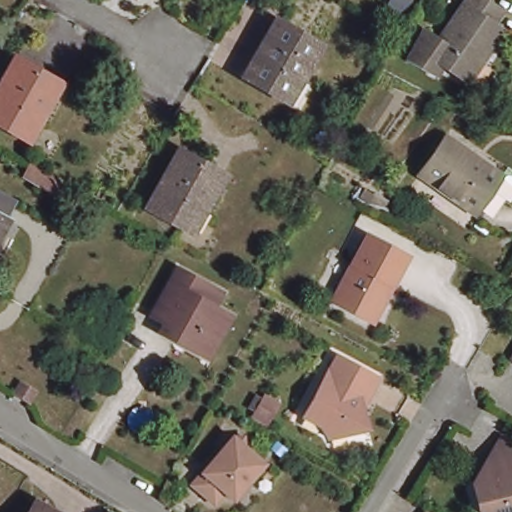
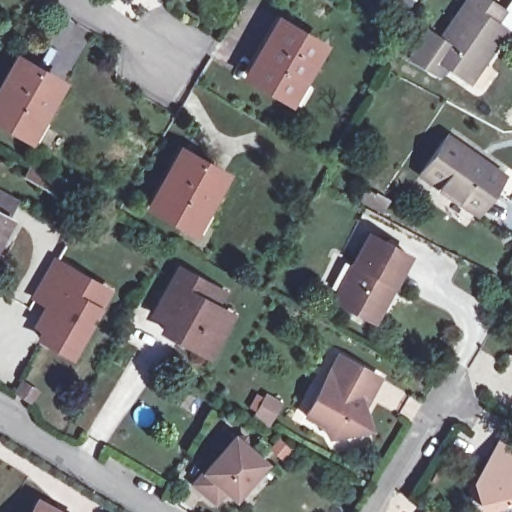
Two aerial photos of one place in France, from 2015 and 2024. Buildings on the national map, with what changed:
unchanged [(407,56),(425,31),(438,40),(466,0),(484,0),(500,11),(491,23),(500,29),(465,81),(441,65),(434,75),(426,69),(407,56)]
unchanged [(286,97),(247,74),(278,20),(321,45),(302,80),(291,99),(286,97)]
unchanged [(25,135),(0,121),(0,88),(17,58),(60,83),(40,118),(29,137),(25,135)]
unchanged [(492,169),(499,160),(512,169),(512,174),(500,192),(484,181),(466,206),(411,168),(438,130),(492,169)]
unchanged [(190,227),(150,205),(181,151),(225,175),(205,210),(195,230),(190,227)]
unchanged [(69,181),(62,195),(21,172),(28,159),(69,181)]
unchanged [(3,210),(0,215),(0,208),(3,210)]
unchanged [(367,233),(407,254),(392,283),(385,279),(365,316),(331,299),(367,233)]
new [(36,296),(41,287),(41,288),(56,260),(108,289),(77,346),(72,354),(34,333),(50,304),(36,296)]
unchanged [(174,322),(159,314),(184,269),(225,291),(217,306),(234,316),(225,331),(213,354),(182,336),(170,330),(174,322)]
unchanged [(377,376),(370,391),(365,389),(359,399),(364,412),(355,429),(328,435),(321,423),(304,414),(336,353),(377,376)]
unchanged [(204,492),(192,483),(222,448),(213,441),(223,428),(232,436),(244,435),(245,445),(263,461),(233,496),(224,489),(217,497),(214,501),(204,492)]
unchanged [(512,512),(488,512),(486,503),(477,504),(473,485),(493,481),(500,472),(487,463),(500,440),(512,448),(512,512)]
unchanged [(32,503),(49,512),(27,512),(32,503)]
unchanged [(428,508),(435,512),(426,512),(428,508)]

